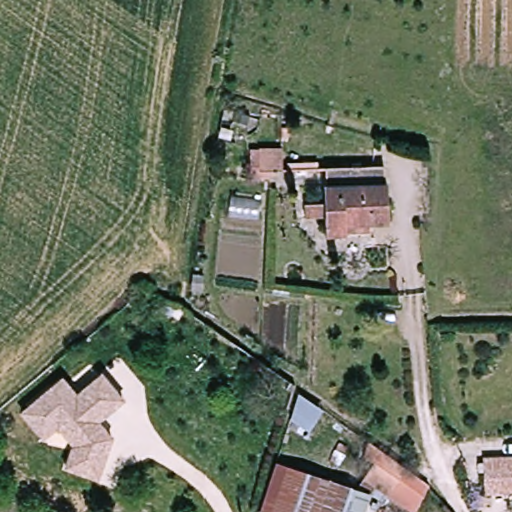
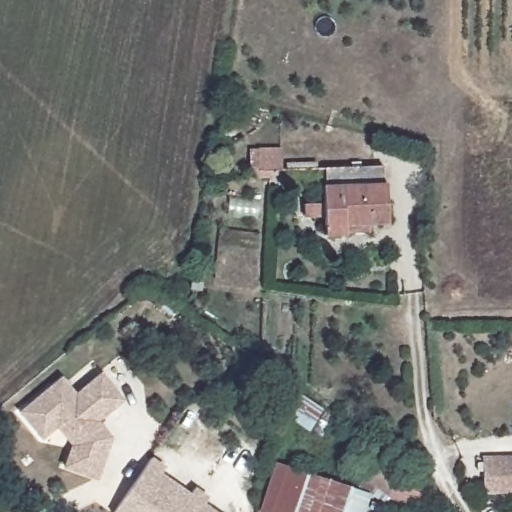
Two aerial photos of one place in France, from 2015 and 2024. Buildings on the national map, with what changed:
unchanged [(354,230),(333,231),(331,216),(320,216),(311,216),(310,199),(319,199),(328,198),(327,183),(331,182),(330,167),(385,161),(387,178),(391,178),(394,215),(373,216),(374,228),(354,230)]
unchanged [(85,396),(110,376),(132,401),(107,423),(108,424),(119,439),(106,480),(75,470),(86,439),(72,422),(52,439),(49,435),(31,414),(38,408),(70,380),(85,396)]
unchanged [(314,428),(288,409),(300,388),(329,406),(314,428)]
unchanged [(432,482),(418,506),(376,488),(368,512),(281,512),(263,505),(280,458),(356,479),(371,437),(432,482)]
unchanged [(472,451),(512,451),(512,484),(472,484),(472,451)]
new [(165,466),(162,472),(191,493),(195,487),(208,497),(203,503),(216,512),(114,512),(152,458),(165,466)]

